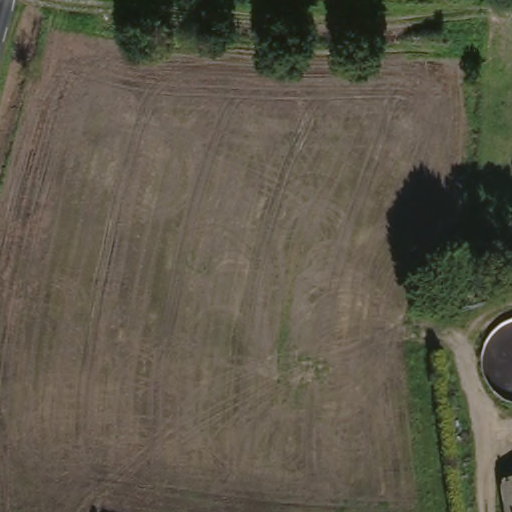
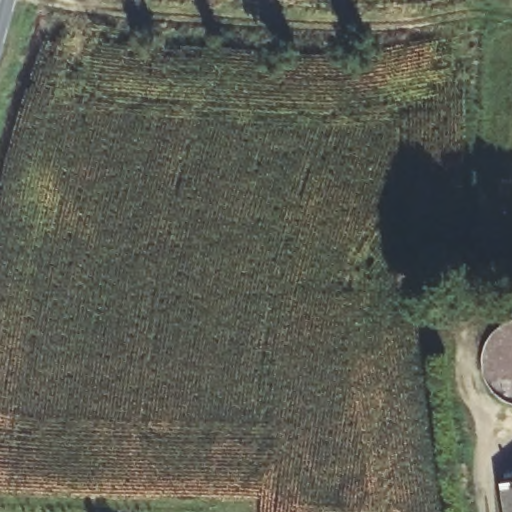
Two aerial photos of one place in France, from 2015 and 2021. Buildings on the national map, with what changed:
unchanged [(512,483),(512,504),(510,483),(512,483)]

